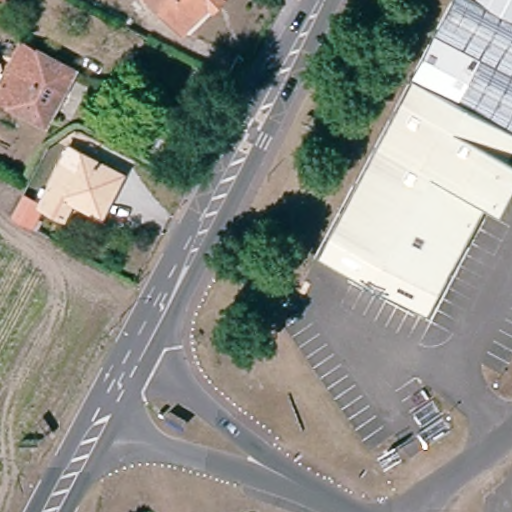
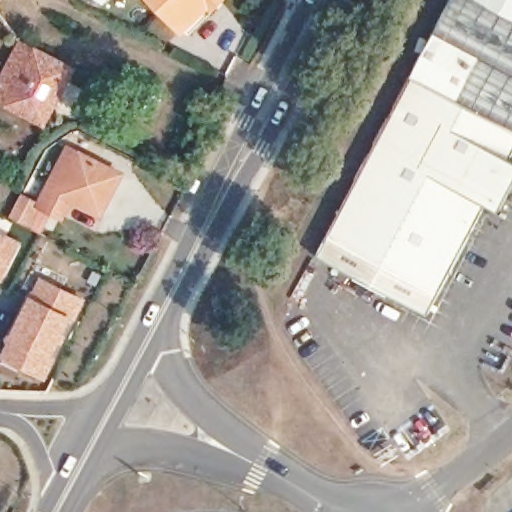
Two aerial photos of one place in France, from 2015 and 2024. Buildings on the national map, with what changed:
unchanged [(206,1),(175,30),(147,0),(220,0),(221,1),(212,9),(206,1)]
unchanged [(508,158),(512,160),(512,184),(497,212),(484,205),(425,315),(313,256),(449,0),(475,0),(512,19),(512,151),(508,158)]
unchanged [(475,0),(512,0),(512,19),(475,0)]
unchanged [(0,99),(0,82),(10,65),(22,40),(36,46),(75,68),(45,124),(0,99)]
unchanged [(42,208),(49,195),(59,174),(49,169),(61,146),(70,150),(72,147),(115,169),(91,217),(66,204),(59,217),(42,208)]
unchanged [(42,208),(32,227),(11,217),(22,198),(42,208)]
new [(5,282),(0,279),(0,230),(24,242),(5,282)]
new [(41,276),(89,300),(79,320),(55,365),(47,381),(0,360),(0,359),(9,342),(5,340),(29,290),(34,292),(41,276)]

